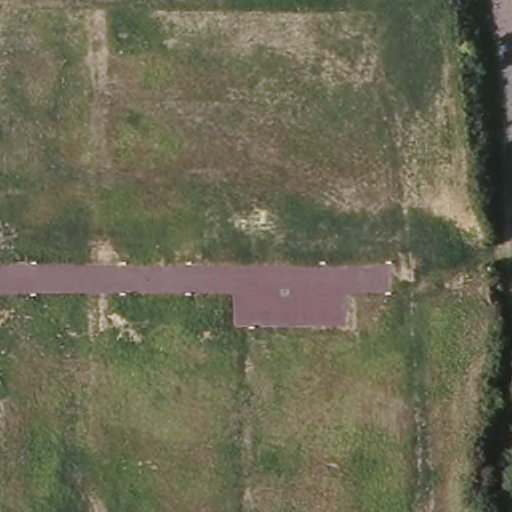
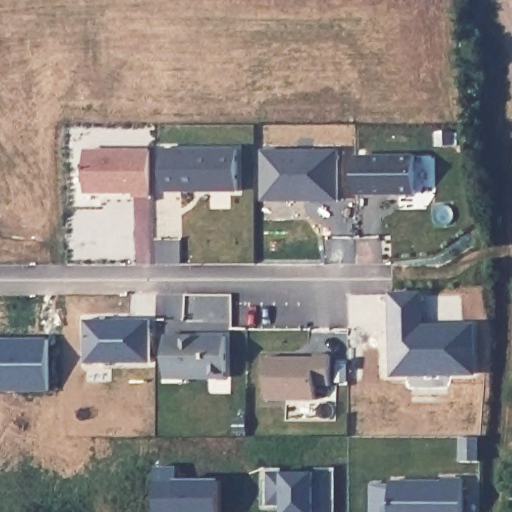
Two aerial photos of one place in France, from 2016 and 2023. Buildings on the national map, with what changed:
new [(152,147),(148,189),(81,188),(80,146),(152,147)]
new [(235,148),(235,191),(203,191),(199,184),(181,184),(181,188),(164,188),(161,148),(235,148)]
new [(341,148),(342,196),(265,196),(262,148),(341,148)]
new [(413,154),(413,190),(352,192),(352,154),(413,154)]
new [(425,303),(427,327),(476,329),(479,377),(392,377),(391,303),(425,303)]
new [(148,324),(147,364),(89,363),(87,324),(148,324)]
new [(226,334),(226,376),(167,376),(166,333),(226,334)]
new [(41,349),(42,400),(0,399),(0,349),(41,349)]
new [(315,355),(315,353),(328,354),(328,383),(314,383),(314,398),(265,398),(263,355),(315,355)]
new [(340,478),(340,506),(318,506),(318,512),(267,512),(267,478),(340,478)]
new [(461,483),(459,512),(385,512),(386,485),(461,483)]

